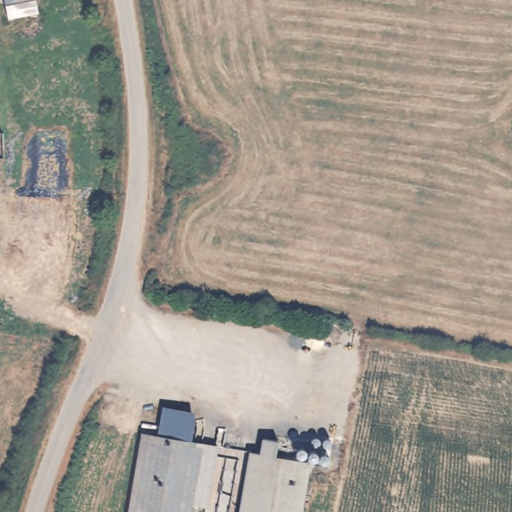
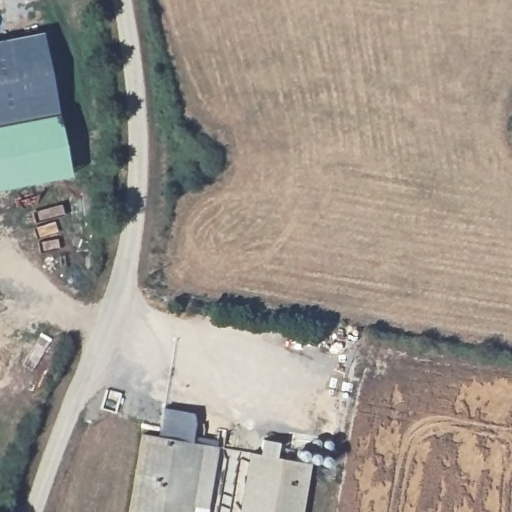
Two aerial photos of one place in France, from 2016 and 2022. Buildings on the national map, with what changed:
unchanged [(3,0),(37,0),(40,14),(7,20),(3,0)]
new [(42,34),(70,175),(0,188),(0,42),(42,34)]
unchanged [(212,446),(204,508),(188,506),(187,512),(127,512),(140,433),(212,446)]
unchanged [(246,451),(256,452),(258,439),(272,440),(271,454),(303,459),(295,512),(236,512),(246,451)]

